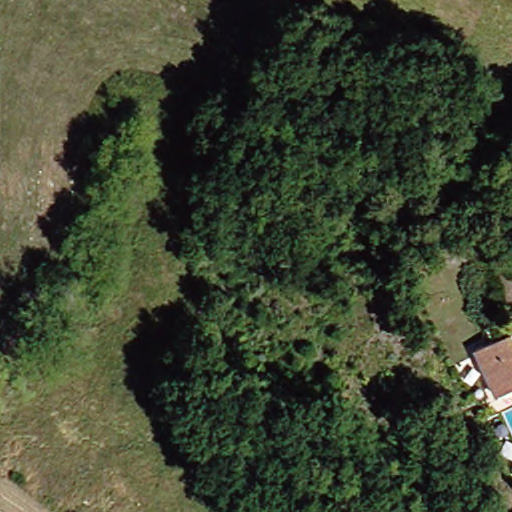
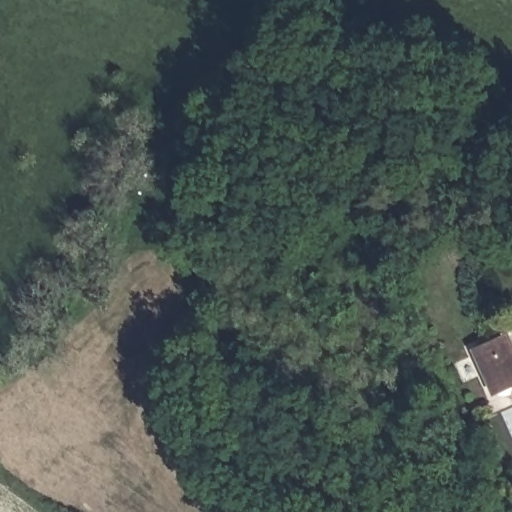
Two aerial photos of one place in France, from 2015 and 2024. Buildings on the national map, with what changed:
unchanged [(494,390),(478,342),(512,325),(512,383),(494,390)]

